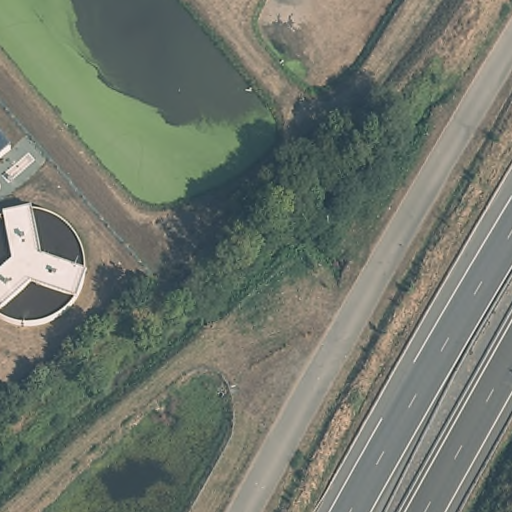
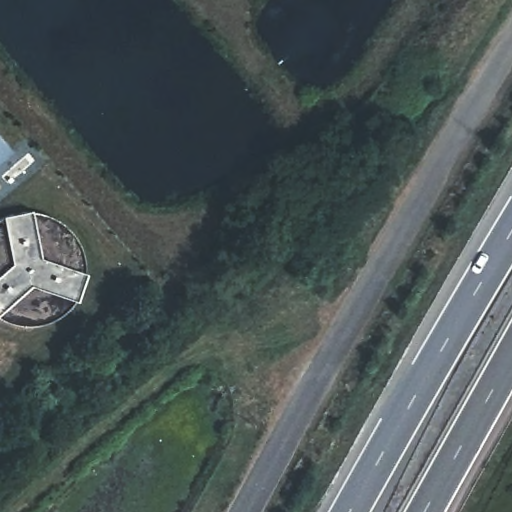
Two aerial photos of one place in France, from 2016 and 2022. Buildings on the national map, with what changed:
unchanged [(0,158),(0,140),(9,151),(0,158)]

